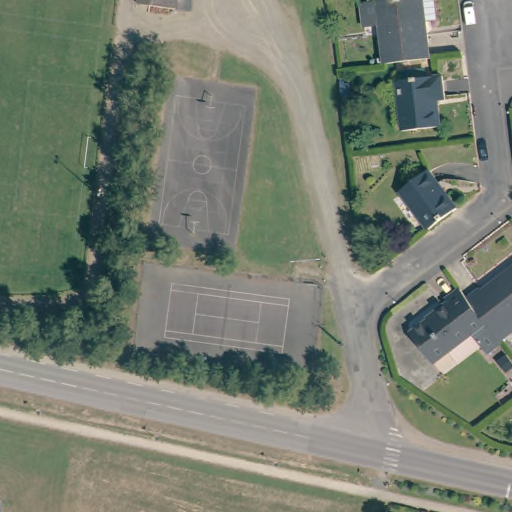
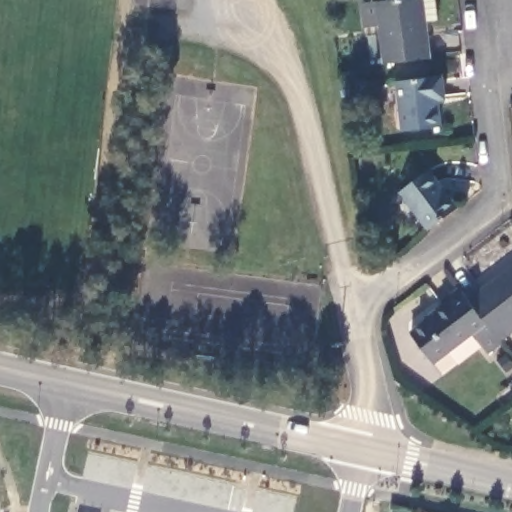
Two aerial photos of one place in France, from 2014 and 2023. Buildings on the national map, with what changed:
unchanged [(142,4),(143,0),(177,0),(175,8),(142,4)]
unchanged [(393,61),(388,0),(434,0),(438,57),(393,61)]
unchanged [(454,102),(448,102),(450,131),(410,136),(406,81),(452,76),(454,102)]
unchanged [(428,169),(456,205),(426,227),(400,190),(428,169)]
unchanged [(512,272),(512,277),(510,273),(512,272)]
unchanged [(512,277),(512,337),(502,343),(470,300),(485,290),(487,293),(512,277)]
unchanged [(473,337),(435,364),(410,332),(435,316),(433,312),(462,288),(470,300),(502,343),(505,347),(489,359),(473,337)]

